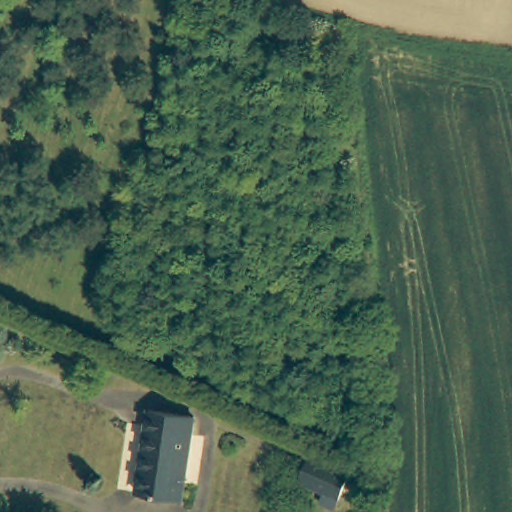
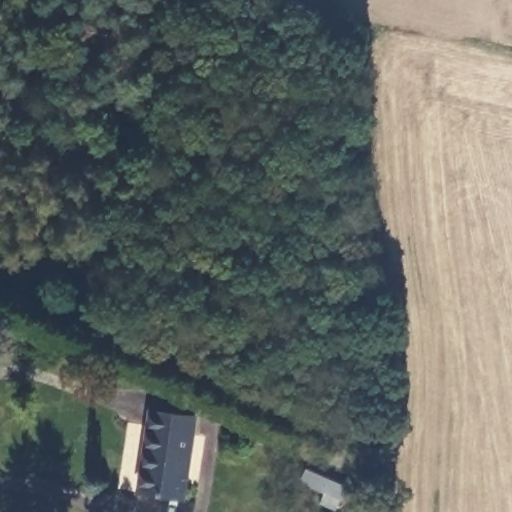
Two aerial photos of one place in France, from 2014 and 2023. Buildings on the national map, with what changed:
unchanged [(190,413),(179,495),(135,490),(144,407),(190,413)]
unchanged [(317,501),(322,487),(297,478),(306,454),(346,469),(337,492),(332,507),(317,501)]

